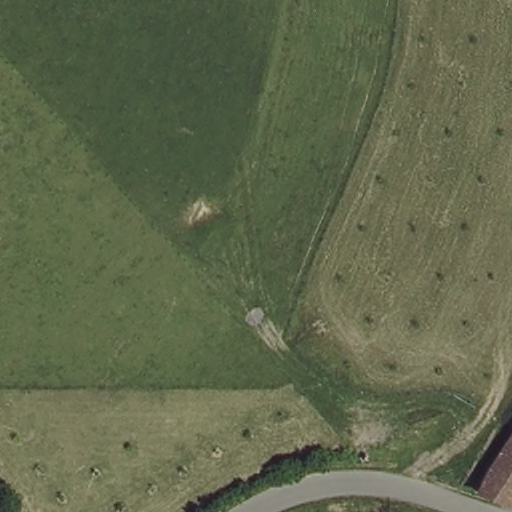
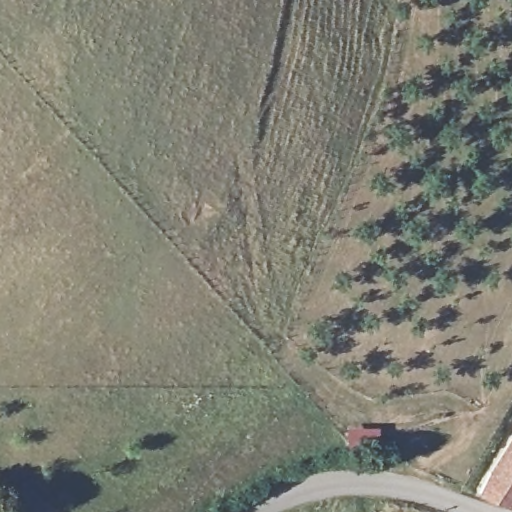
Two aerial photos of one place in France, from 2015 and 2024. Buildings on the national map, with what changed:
unchanged [(506,501),(480,492),(493,463),(512,433),(512,492),(506,501)]

